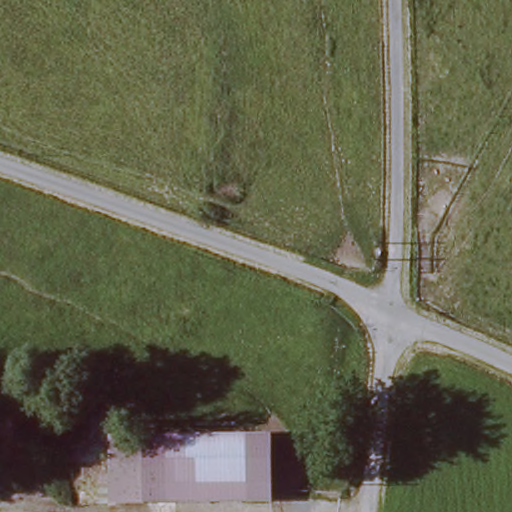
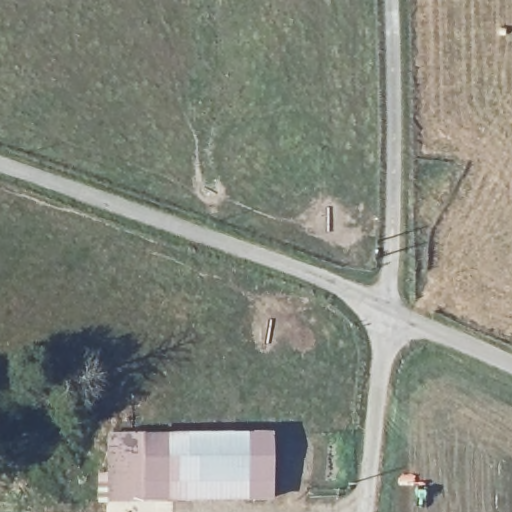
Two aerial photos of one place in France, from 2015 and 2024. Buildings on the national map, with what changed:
unchanged [(145,501),(110,501),(110,435),(145,435),(145,501)]
unchanged [(271,436),(272,502),(145,501),(145,435),(271,436)]

